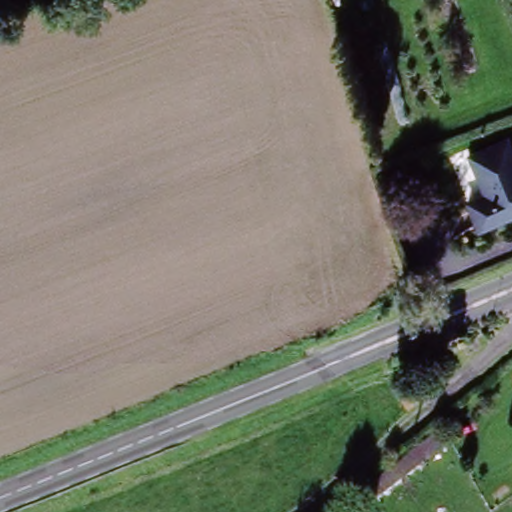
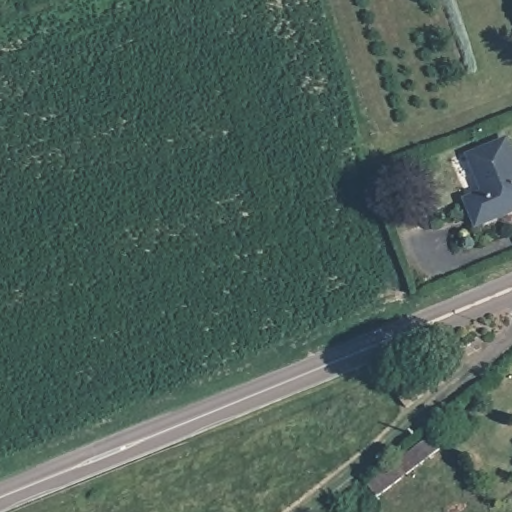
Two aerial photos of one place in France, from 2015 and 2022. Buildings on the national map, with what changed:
unchanged [(478,225),(469,199),(484,193),(469,153),(507,139),(512,154),(512,200),(512,212),(478,225)]

